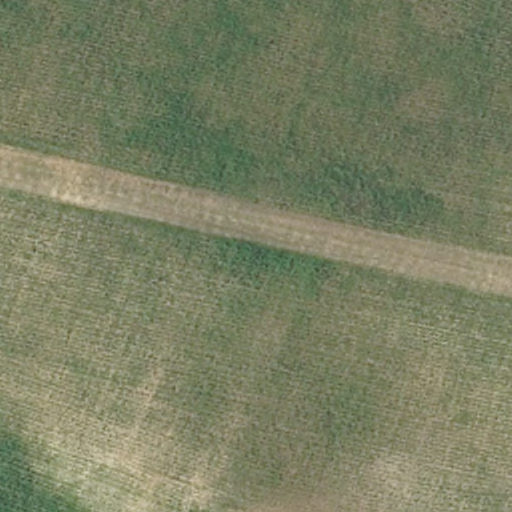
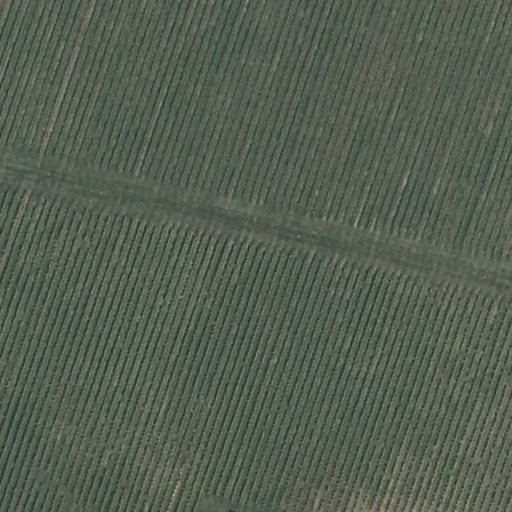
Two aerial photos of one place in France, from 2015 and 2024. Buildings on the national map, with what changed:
[]

